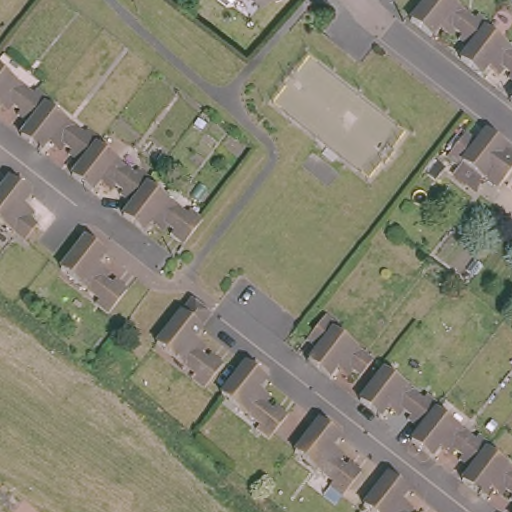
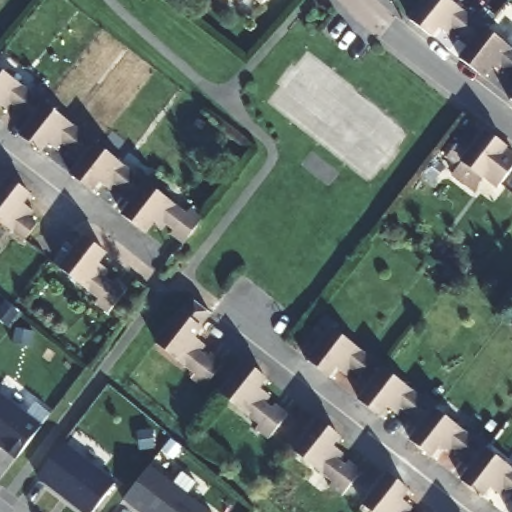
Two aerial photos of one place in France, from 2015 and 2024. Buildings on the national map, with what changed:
unchanged [(255,0),(270,0),(264,8),(255,0)]
unchanged [(473,44),(461,35),(464,31),(457,26),(452,32),(440,23),(433,33),(414,18),(416,14),(427,0),(457,0),(475,15),(480,10),(492,20),(488,25),(473,44)]
unchanged [(463,56),(473,44),(488,25),(512,44),(512,69),(507,65),(502,71),(491,63),(484,73),(463,56)]
unchanged [(25,123),(13,113),(15,109),(10,104),(5,110),(0,106),(0,70),(30,92),(34,87),(45,98),(42,102),(25,123)]
unchanged [(511,75),(512,74),(512,76),(511,75)]
unchanged [(82,133),(85,128),(97,138),(93,143),(77,163),(65,153),(67,150),(60,144),(55,150),(45,141),(38,151),(18,135),(17,134),(25,123),(42,102),(82,133)]
unchanged [(471,183),(455,172),(460,165),(449,155),(468,131),(480,140),(489,128),(509,143),(506,147),(512,152),(512,170),(500,185),(485,173),(484,175),(480,172),(471,183)]
unchanged [(132,172),(135,167),(148,177),(145,182),(129,203),(115,193),(119,189),(113,184),(107,191),(96,181),(89,190),(83,186),(82,186),(70,175),(69,175),(77,163),(93,143),(132,172)]
unchanged [(30,197),(22,207),(35,217),(30,223),(38,230),(26,244),(0,223),(0,193),(1,194),(10,182),(22,191),(30,197)]
unchanged [(179,242),(165,232),(169,228),(162,223),(157,228),(147,220),(140,230),(120,214),(129,203),(145,182),(181,210),(185,205),(199,216),(179,242)]
unchanged [(82,236),(101,251),(93,261),(106,271),(102,277),(107,282),(112,277),(124,288),(105,311),(92,301),(95,297),(56,265),(80,235),(82,236)]
unchanged [(190,296),(209,310),(207,313),(199,324),(192,333),(205,344),(200,350),(206,355),(210,350),(222,360),(204,384),(191,374),(194,370),(156,340),(181,309),(190,296)]
unchanged [(357,373),(348,367),(344,373),(332,365),(325,373),(306,358),(315,346),(302,336),(322,312),(334,321),(330,327),(369,357),(357,373)]
unchanged [(243,364),(264,379),(257,388),(270,398),(265,404),(271,409),(275,405),(287,415),(267,439),(255,430),(259,425),(234,406),(219,395),(243,364)]
unchanged [(433,407),(418,427),(405,417),(408,412),(402,408),(397,414),(384,405),(377,414),(366,405),(357,398),(382,367),(420,398),(425,392),(437,401),(433,407)]
new [(17,459),(0,446),(0,395),(42,427),(17,459)]
unchanged [(484,447),(468,467),(455,457),(458,453),(452,447),(447,454),(435,445),(429,454),(419,446),(409,438),(418,427),(433,407),(470,437),(475,432),(487,442),(484,447)]
unchanged [(317,416),(327,424),(337,432),(330,440),(342,450),(337,456),(344,462),(347,458),(359,467),(340,492),(327,482),(331,477),(312,463),(292,448),(317,416)]
new [(115,481),(90,512),(39,473),(64,441),(115,481)]
unchanged [(508,497),(510,494),(504,488),(498,494),(487,485),(480,494),(460,478),(468,467),(484,447),(512,469),(512,500),(508,497)]
new [(150,466),(209,512),(138,512),(124,501),(150,466)]
unchanged [(385,470),(405,486),(398,495),(410,504),(405,511),(407,512),(375,512),(361,501),(385,470)]
unchanged [(415,511),(416,512),(414,512),(415,511)]

